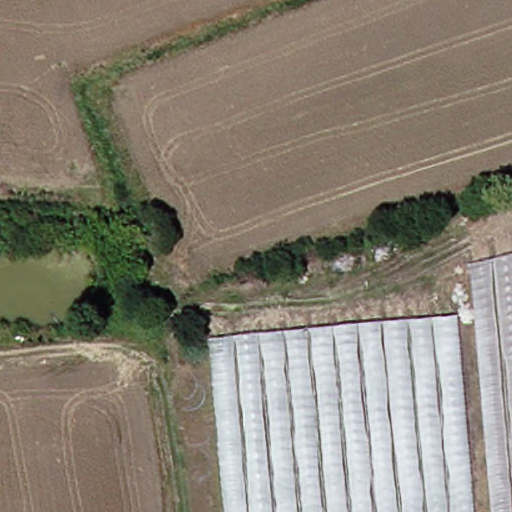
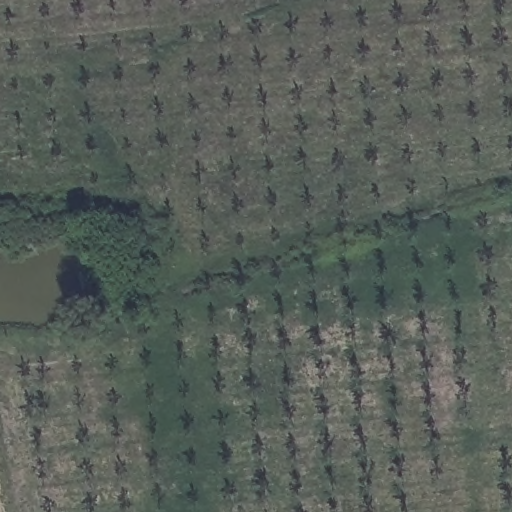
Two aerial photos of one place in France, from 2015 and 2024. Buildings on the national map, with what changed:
demolished [(473,266),(512,256),(512,512),(495,512),(473,266)]
demolished [(212,337),(459,312),(477,512),(227,512),(212,337)]

